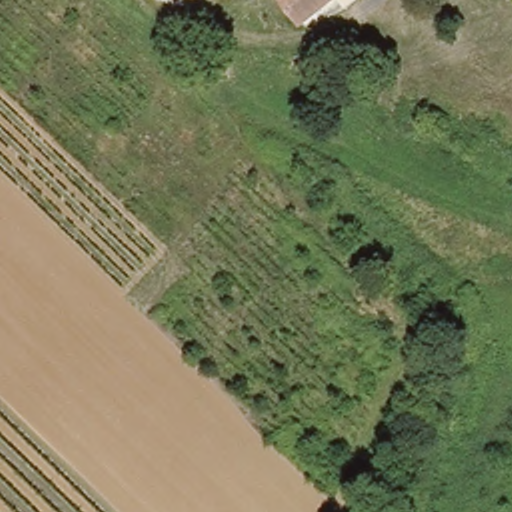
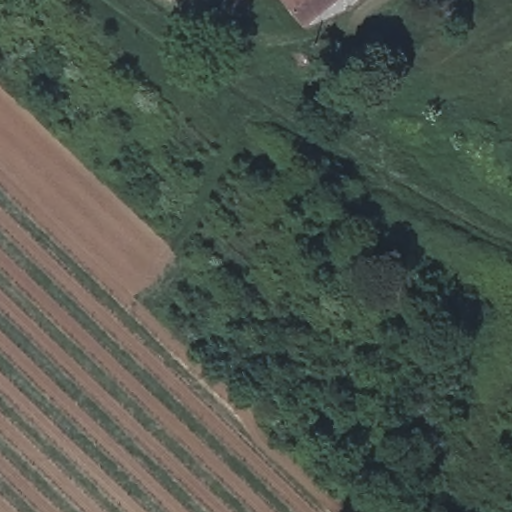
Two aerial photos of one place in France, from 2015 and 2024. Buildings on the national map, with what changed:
unchanged [(330,0),(305,20),(287,0),(330,0)]

